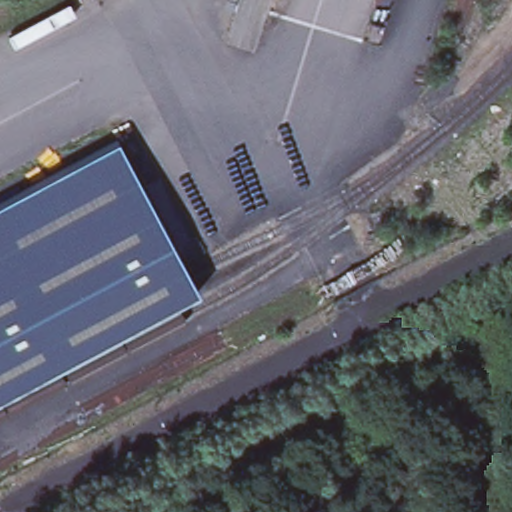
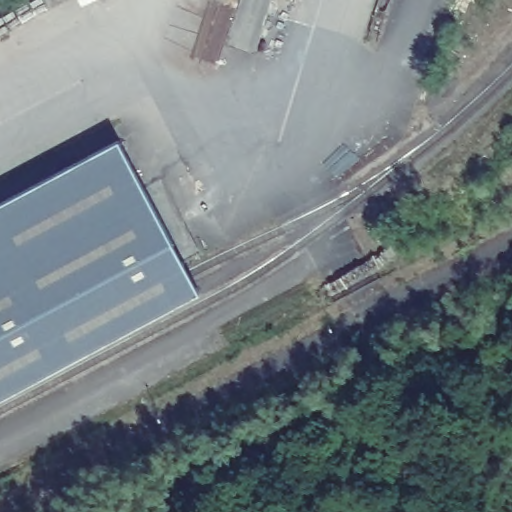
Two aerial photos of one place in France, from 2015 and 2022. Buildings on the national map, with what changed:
unchanged [(0,400),(0,221),(123,156),(184,271),(195,292),(192,299),(168,311),(60,369),(43,378),(0,400)]

